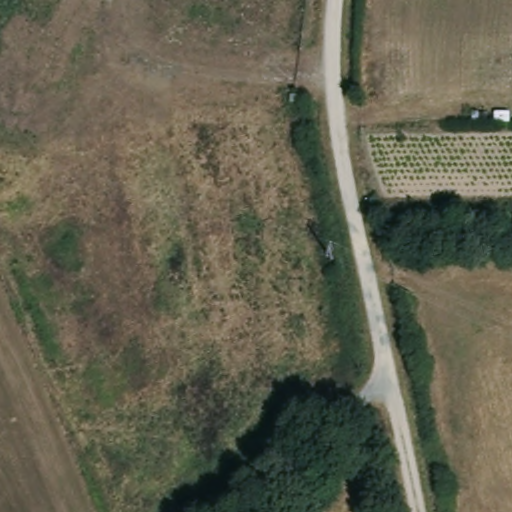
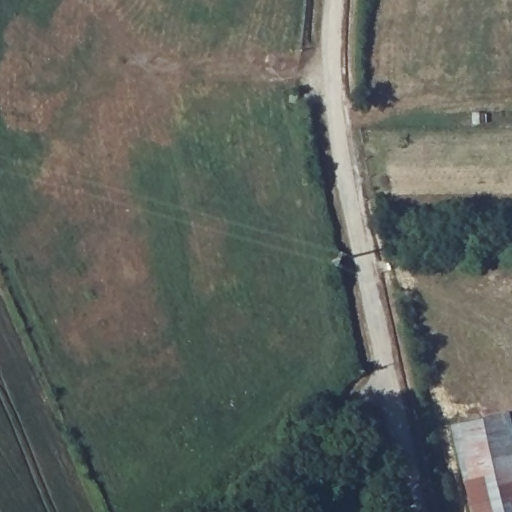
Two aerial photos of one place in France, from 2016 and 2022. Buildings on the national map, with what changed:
new [(506,413),(512,439),(512,512),(472,512),(451,426),(506,413)]

